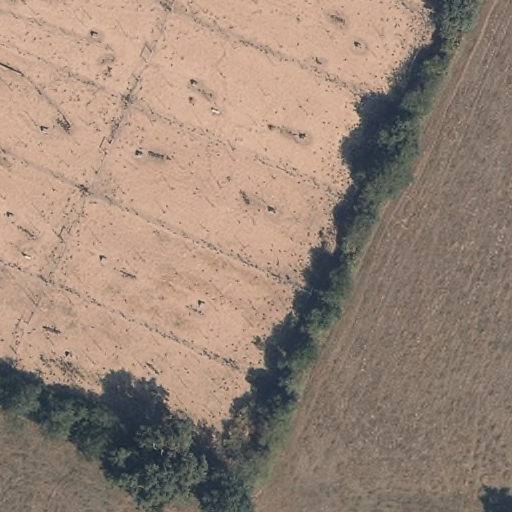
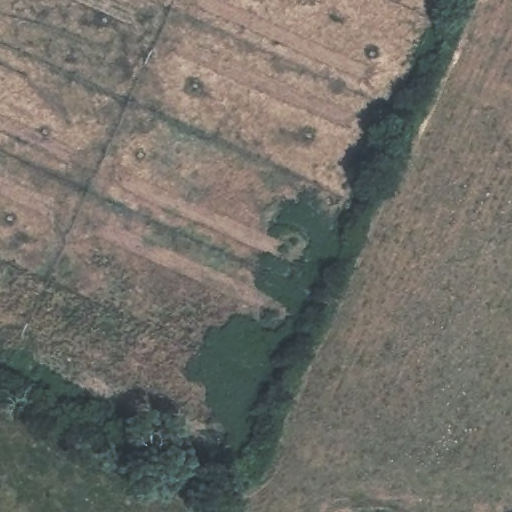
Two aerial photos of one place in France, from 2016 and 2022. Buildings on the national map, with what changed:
[]

